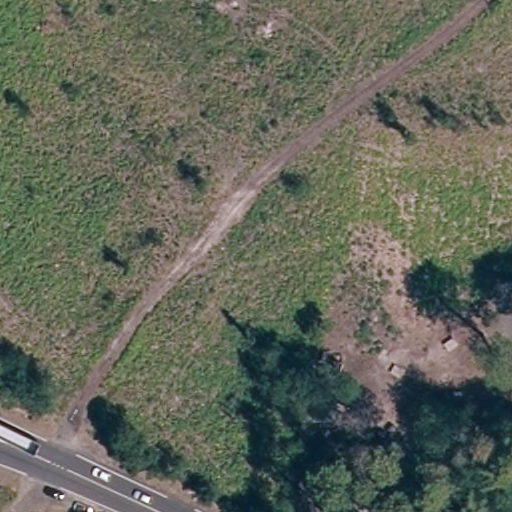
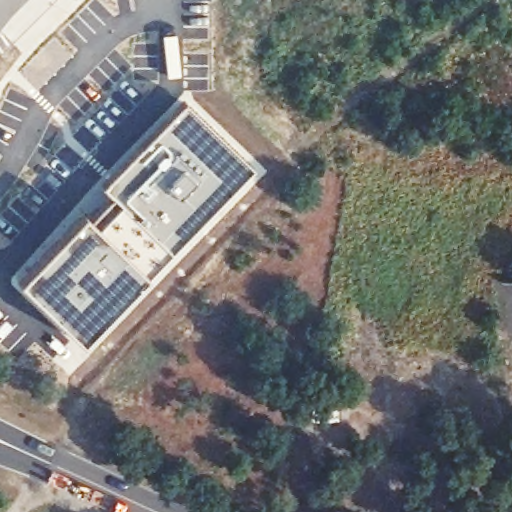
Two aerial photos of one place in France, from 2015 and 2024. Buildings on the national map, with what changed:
new [(81,210),(86,215),(107,194),(97,184),(131,146),(181,97),(249,164),(168,250),(79,341),(14,280),(81,210)]
unchanged [(358,427),(336,424),(338,400),(360,403),(358,427)]

